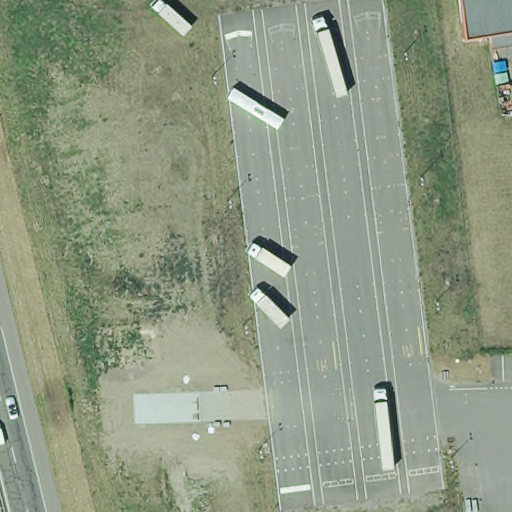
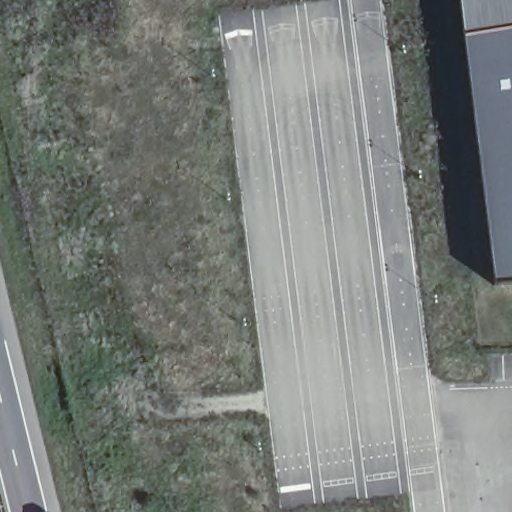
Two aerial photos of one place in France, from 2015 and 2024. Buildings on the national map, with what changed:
unchanged [(490,30),(463,36),(458,0),(512,0),(512,41),(489,44),(490,30)]
new [(463,36),(490,30),(489,44),(512,41),(512,282),(494,284),(463,36)]

